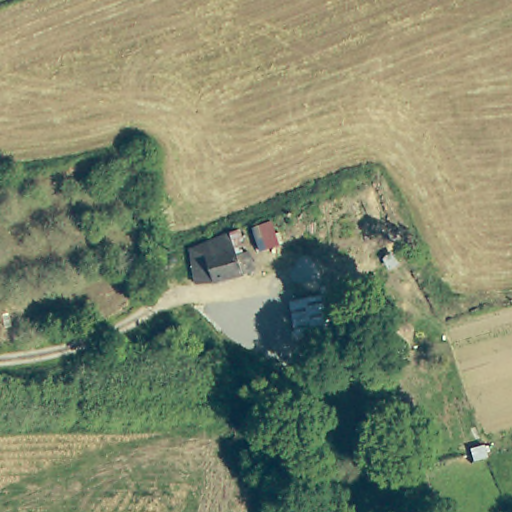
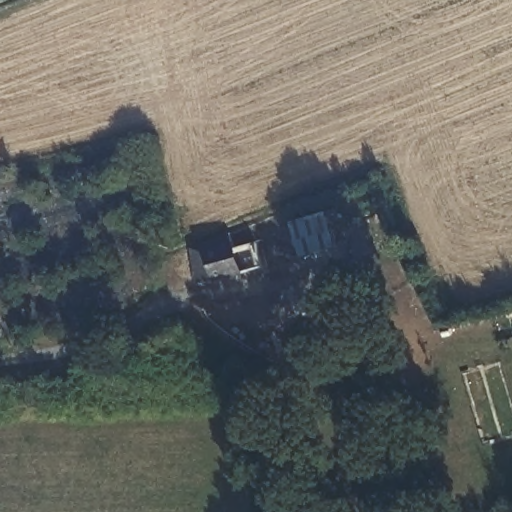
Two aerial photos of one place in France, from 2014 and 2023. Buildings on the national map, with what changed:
unchanged [(224,233),(231,249),(243,246),(252,263),(245,265),(195,283),(189,244),(224,233)]

